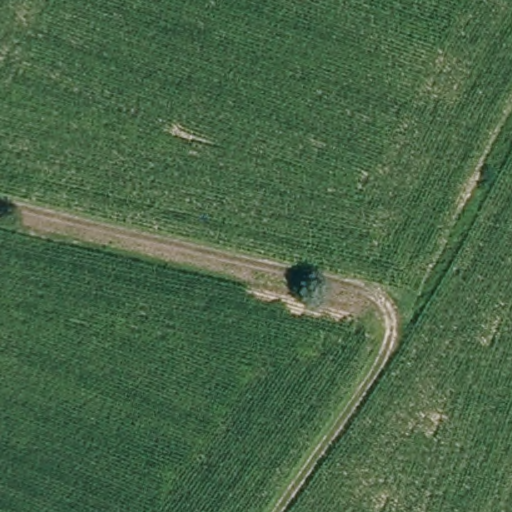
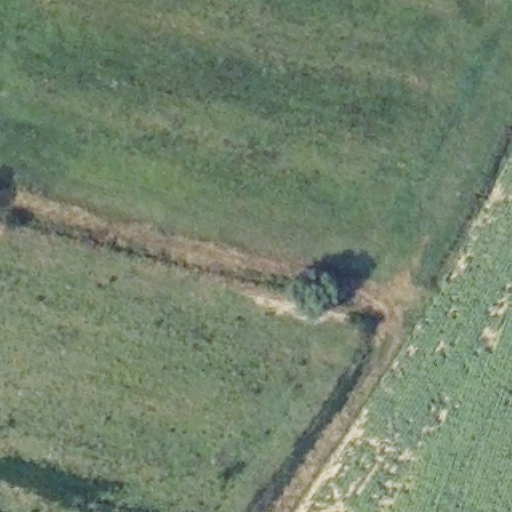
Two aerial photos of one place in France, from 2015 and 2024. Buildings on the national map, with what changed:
[]

